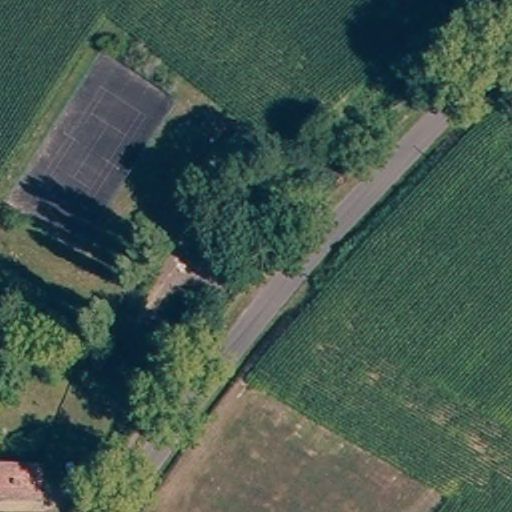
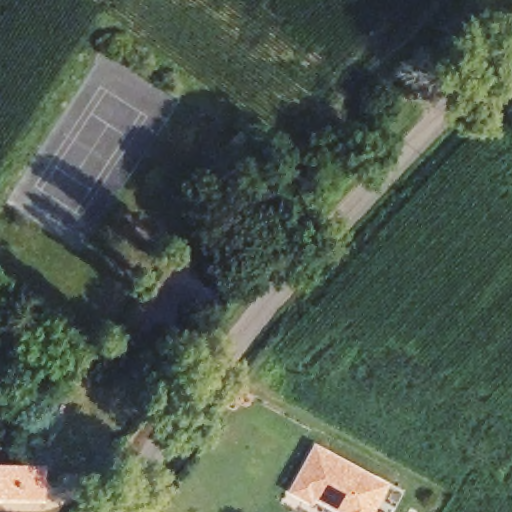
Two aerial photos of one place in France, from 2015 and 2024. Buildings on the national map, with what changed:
new [(317,448),(386,485),(371,512),(342,512),(315,497),(312,502),(293,492),(317,448)]
unchanged [(39,499),(0,497),(0,470),(40,472),(39,499)]

